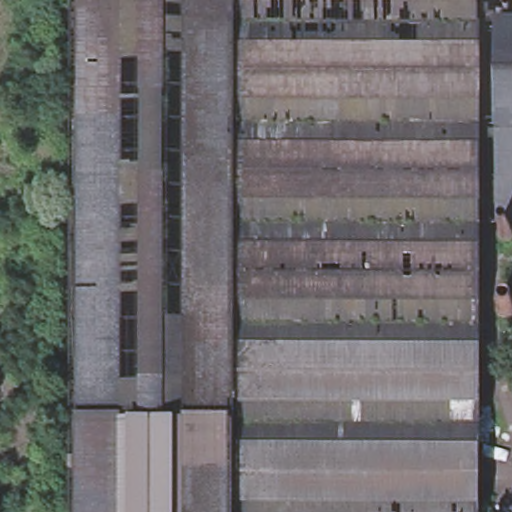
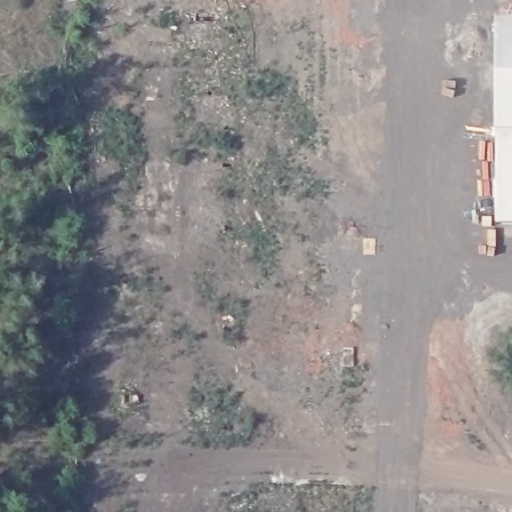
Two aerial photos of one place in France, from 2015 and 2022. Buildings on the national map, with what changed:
demolished [(80,491),(80,0),(227,0),(226,492),(80,491)]
demolished [(227,0),(351,0),(351,512),(226,512),(226,492),(227,0)]
demolished [(475,512),(351,512),(351,0),(475,0),(475,512)]
unchanged [(511,5),(508,5),(505,5),(502,5),(500,4),(498,1),(498,0),(512,0),(512,4),(511,5)]
unchanged [(496,205),(495,25),(512,25),(512,205),(496,205)]
demolished [(226,492),(226,512),(79,512),(80,491),(226,492)]

